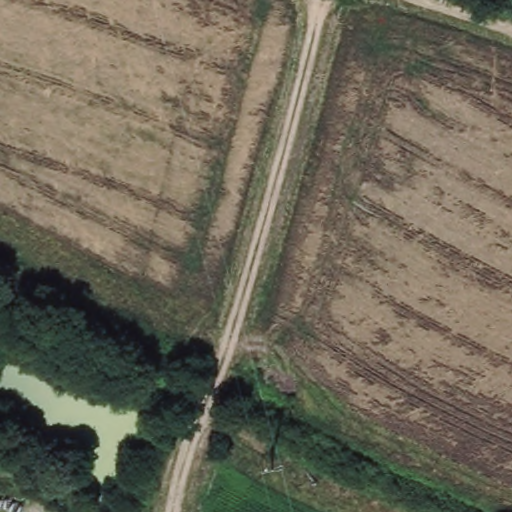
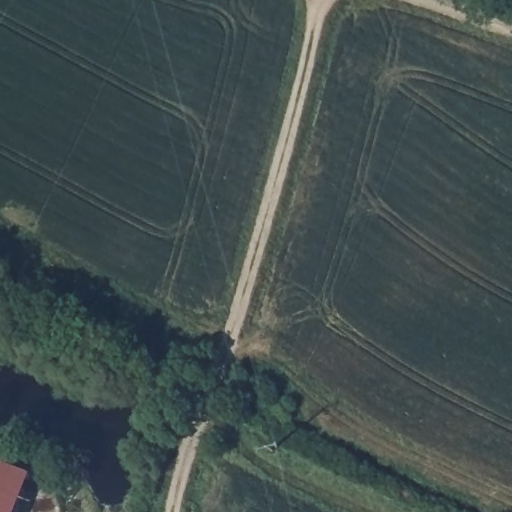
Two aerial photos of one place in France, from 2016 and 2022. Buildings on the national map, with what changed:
new [(30,472),(15,512),(0,512),(0,461),(30,472)]

